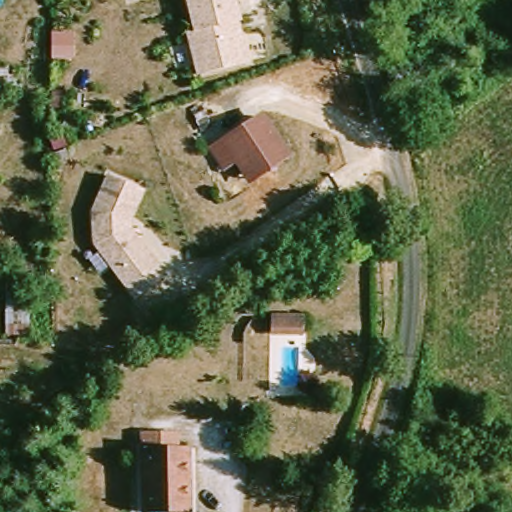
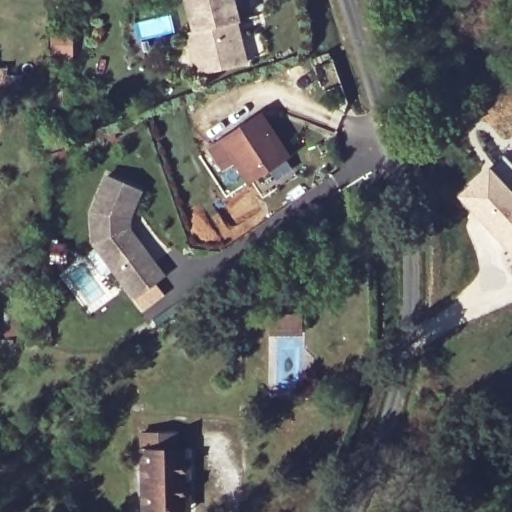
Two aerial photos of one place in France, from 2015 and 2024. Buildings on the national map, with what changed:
unchanged [(198,75),(188,33),(195,31),(187,0),(234,0),(239,21),(237,22),(239,30),(247,63),(198,75)]
unchanged [(248,175),(225,140),(260,116),(283,152),(286,157),(252,180),(248,175)]
new [(512,189),(512,257),(496,241),(455,195),(488,164),(512,189)]
unchanged [(131,299),(90,243),(88,213),(103,176),(137,190),(125,218),(125,229),(160,277),(131,299)]
unchanged [(300,302),(300,319),(269,319),(269,303),(300,302)]
unchanged [(194,431),(194,449),(206,449),(207,473),(207,512),(158,512),(156,432),(194,431)]

